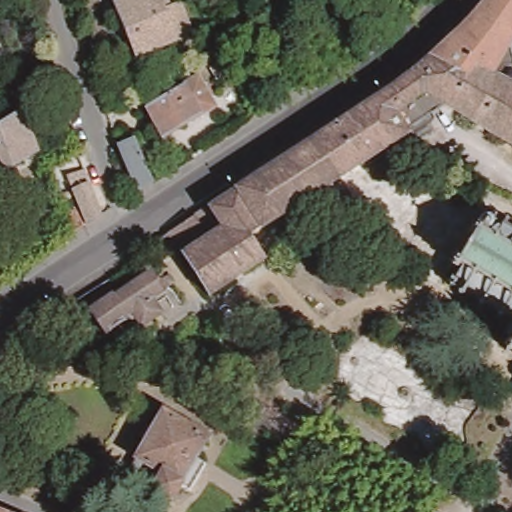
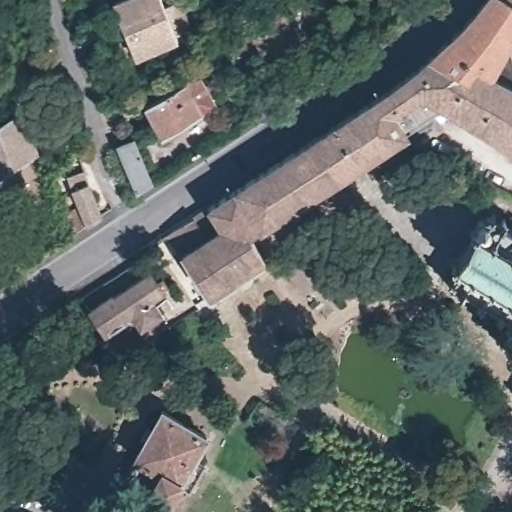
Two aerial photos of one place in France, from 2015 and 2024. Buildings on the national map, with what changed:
unchanged [(183,38),(141,57),(118,3),(123,0),(166,0),(183,38)]
unchanged [(172,233),(320,137),(333,128),(357,113),(385,96),(408,78),(432,59),(453,39),(472,19),(488,0),(512,0),(512,22),(505,33),(512,62),(512,136),(459,104),(455,109),(448,104),(410,129),(411,131),(383,149),(366,161),(359,166),(347,174),(255,235),(270,258),(213,295),(172,233)]
unchanged [(221,75),(216,63),(226,58),(232,70),(221,75)]
unchanged [(135,111),(173,92),(190,83),(205,113),(189,123),(152,143),(135,111)]
unchanged [(0,175),(0,124),(21,110),(35,148),(36,150),(0,175)]
unchanged [(133,138),(151,181),(136,190),(117,144),(133,138)]
unchanged [(101,213),(73,232),(65,212),(78,207),(66,176),(85,169),(101,213)]
unchanged [(457,263),(488,214),(512,228),(512,314),(450,275),(457,263)]
unchanged [(161,312),(141,326),(135,318),(106,337),(89,311),(112,296),(113,297),(150,274),(156,284),(162,279),(168,288),(152,298),(161,312)]
unchanged [(510,323),(512,323),(512,332),(509,326),(510,323)]
unchanged [(512,337),(512,343),(510,341),(512,337)]
unchanged [(139,442),(150,424),(143,421),(151,407),(157,411),(168,393),(211,420),(199,441),(210,448),(195,475),(183,468),(174,485),(149,469),(130,458),(139,442)]

